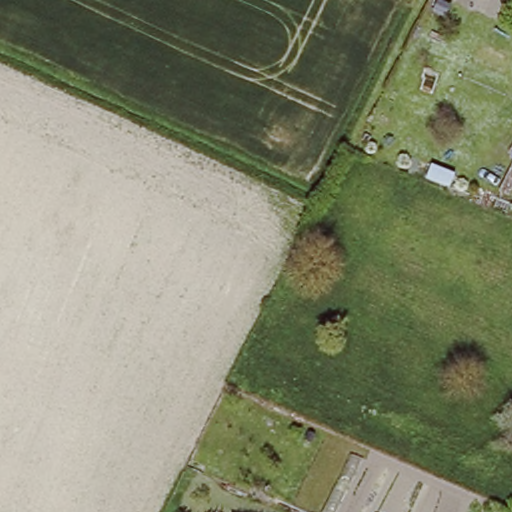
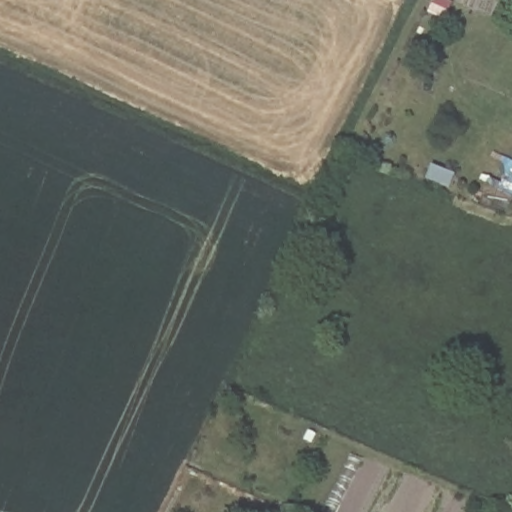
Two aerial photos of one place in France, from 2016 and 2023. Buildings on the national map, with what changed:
[]

